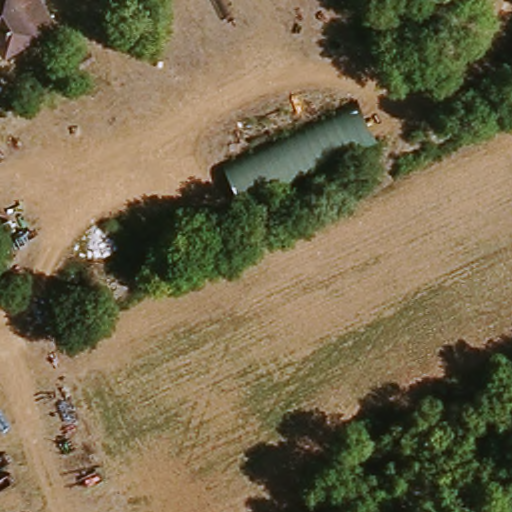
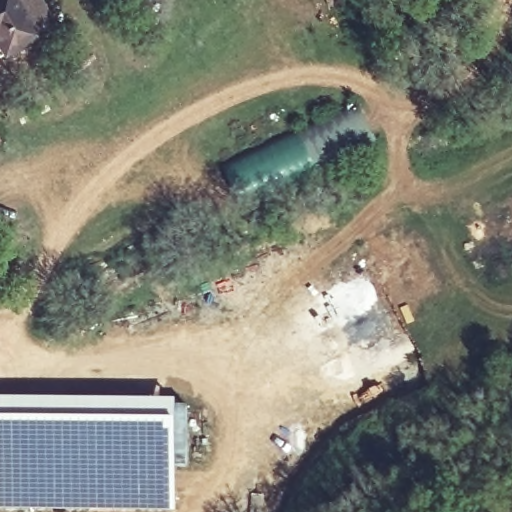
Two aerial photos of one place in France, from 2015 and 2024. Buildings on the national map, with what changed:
unchanged [(0,53),(0,0),(37,0),(51,26),(0,53)]
unchanged [(360,101),(377,141),(241,204),(223,165),(360,101)]
new [(188,406),(187,466),(175,466),(175,510),(0,510),(0,398),(176,399),(175,406),(188,406)]

